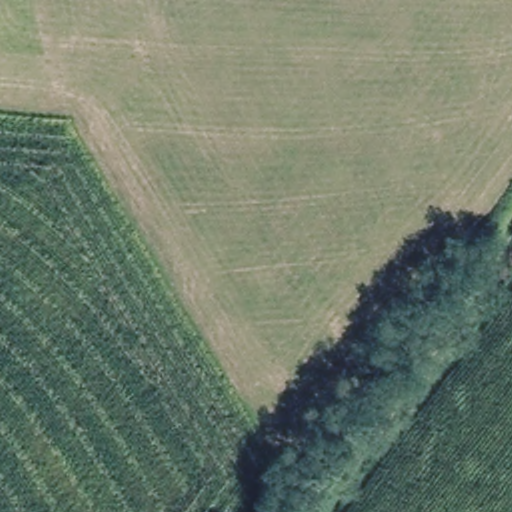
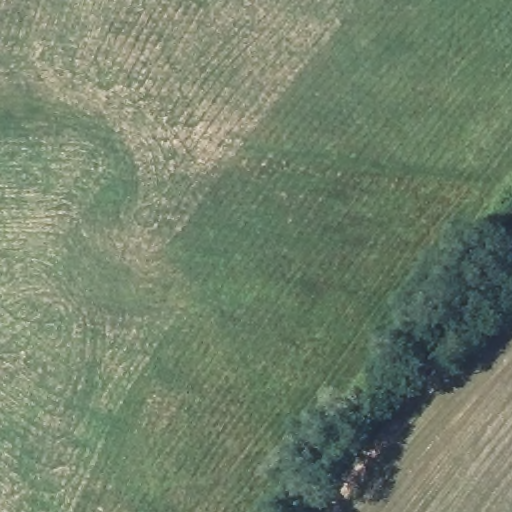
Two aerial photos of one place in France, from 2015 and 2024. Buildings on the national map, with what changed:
[]

